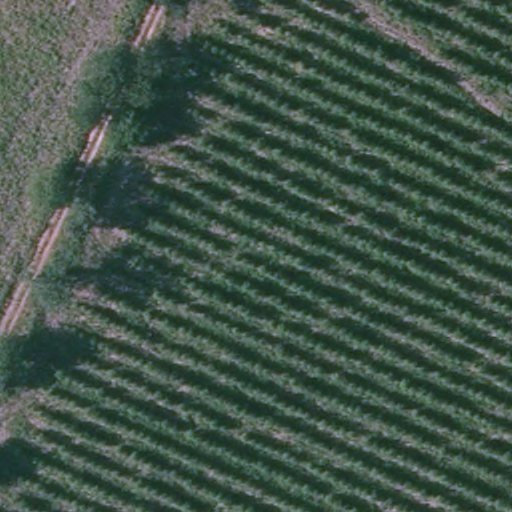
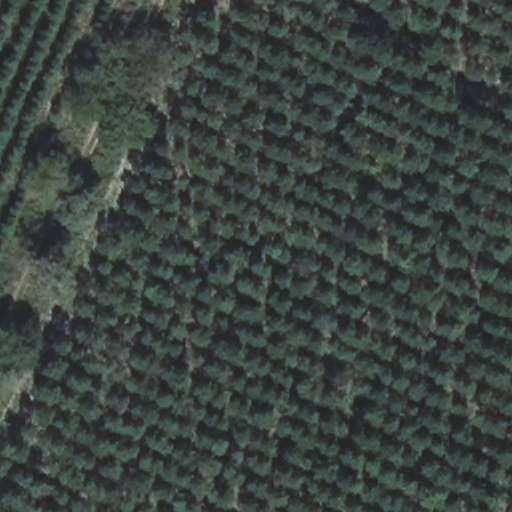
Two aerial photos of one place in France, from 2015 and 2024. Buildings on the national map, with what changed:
[]

